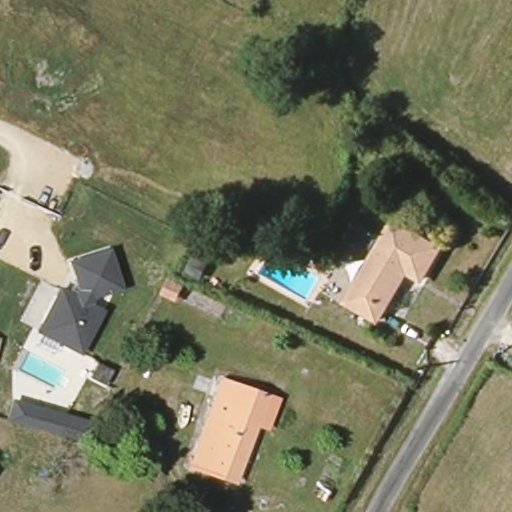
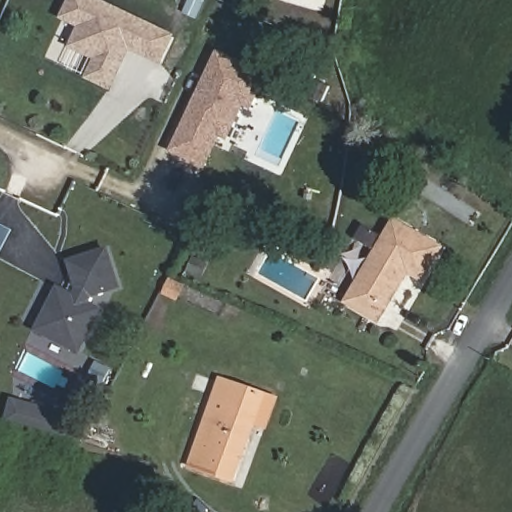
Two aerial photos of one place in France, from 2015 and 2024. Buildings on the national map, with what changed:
new [(131,51),(111,91),(84,78),(93,60),(67,49),(78,29),(59,20),(69,0),(102,0),(177,35),(161,65),(131,51)]
new [(252,111),(244,108),(229,141),(222,139),(207,170),(169,151),(217,49),(268,73),(252,111)]
unchanged [(424,280),(411,272),(382,320),(347,298),(396,217),(444,247),(424,280)]
unchanged [(121,289),(93,297),(90,303),(103,309),(80,355),(34,332),(56,285),(72,292),(74,286),(68,260),(108,248),(121,289)]
unchanged [(229,482),(184,465),(216,377),(262,396),(279,402),(265,435),(249,428),(229,482)]
unchanged [(99,422),(94,442),(5,418),(11,398),(99,422)]

